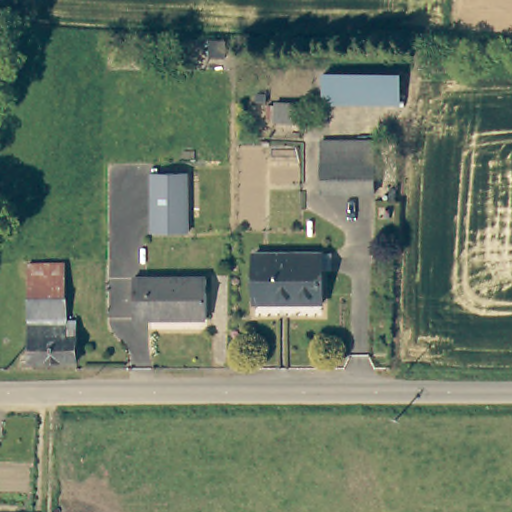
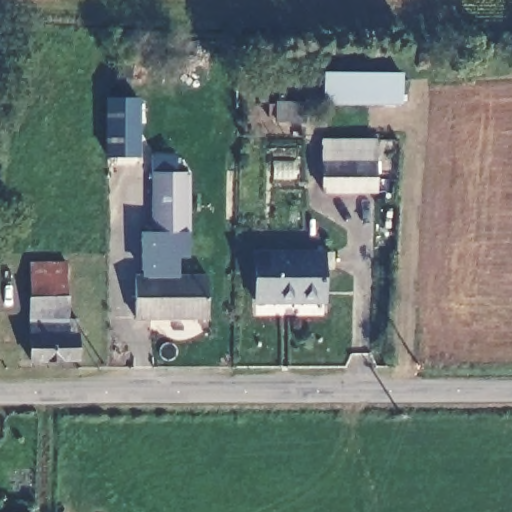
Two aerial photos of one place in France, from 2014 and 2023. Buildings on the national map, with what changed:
unchanged [(326,73),(400,75),(399,102),(327,102),(326,73)]
new [(107,97),(140,98),(140,157),(105,157),(107,97)]
unchanged [(309,124),(278,123),(279,103),(309,104),(309,124)]
unchanged [(321,142),(374,141),(374,164),(321,165),(321,142)]
unchanged [(375,194),(322,194),(321,165),(374,164),(375,194)]
unchanged [(187,176),(186,235),(152,236),(153,176),(187,176)]
unchanged [(321,303),(253,302),(255,253),(321,254),(321,273),(321,303)]
unchanged [(76,323),(76,362),(30,363),(30,312),(30,300),(30,265),(66,264),(67,298),(67,323),(76,323)]
unchanged [(135,279),(205,278),(206,320),(135,320),(135,279)]

